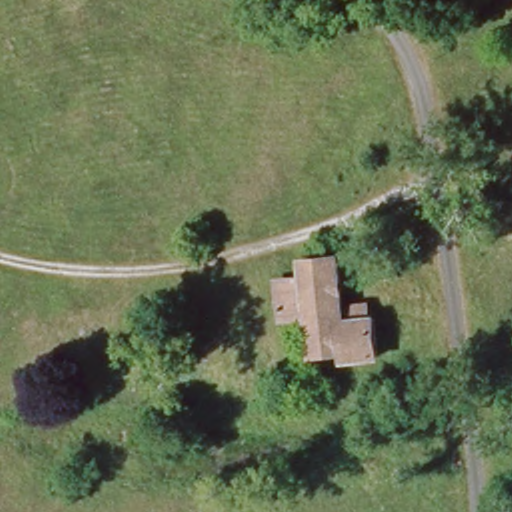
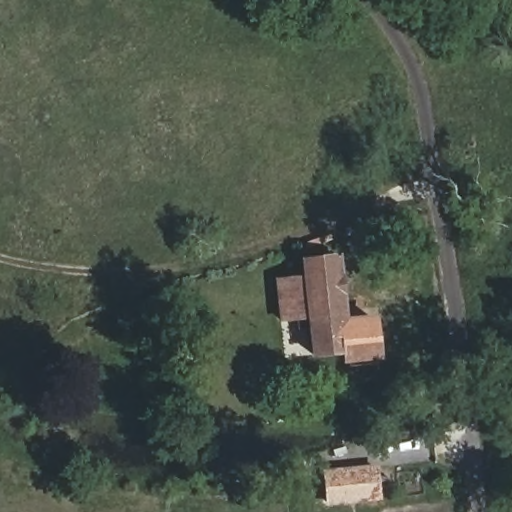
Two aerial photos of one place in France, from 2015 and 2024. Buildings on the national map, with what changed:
unchanged [(312,350),(308,311),(282,314),(277,276),(304,273),(303,255),(338,252),(345,315),(374,312),(379,352),(345,355),(344,347),(312,350)]
new [(382,498),(333,503),(329,473),(379,468),(382,498)]

